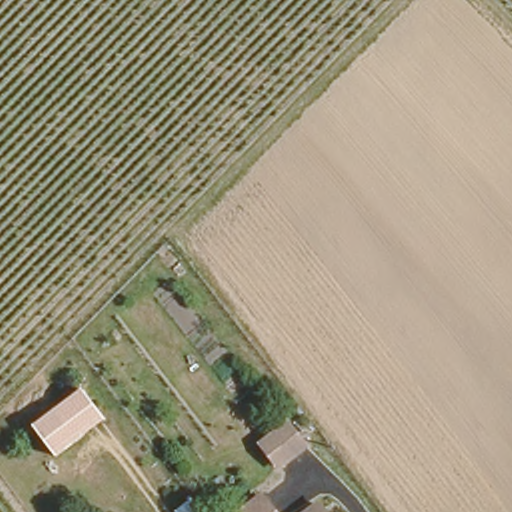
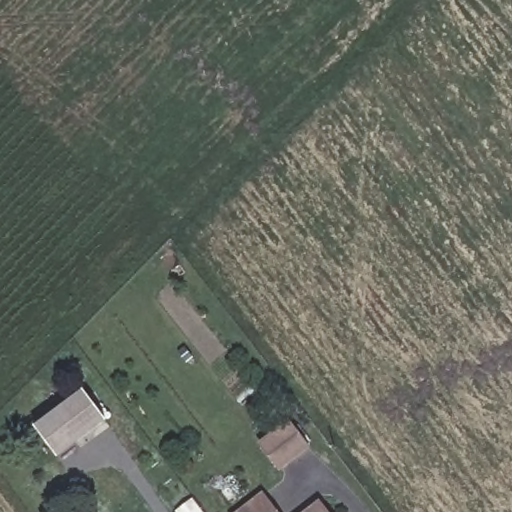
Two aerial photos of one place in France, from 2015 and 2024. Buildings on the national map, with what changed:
unchanged [(57,457),(35,427),(84,391),(107,420),(57,457)]
unchanged [(257,436),(285,414),(304,439),(275,460),(257,436)]
unchanged [(225,508),(232,503),(256,487),(276,512),(228,512),(225,508)]
unchanged [(316,497),(328,512),(297,512),(316,497)]

